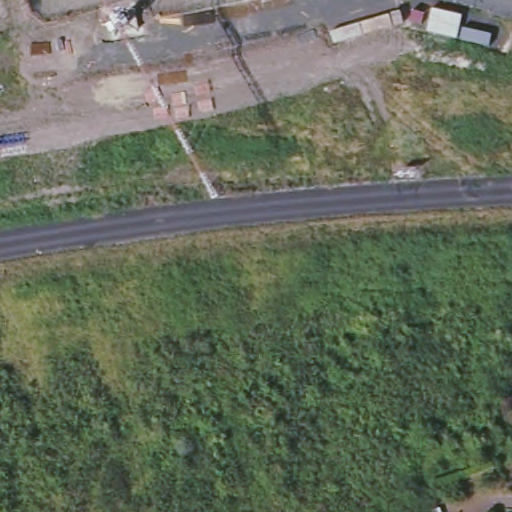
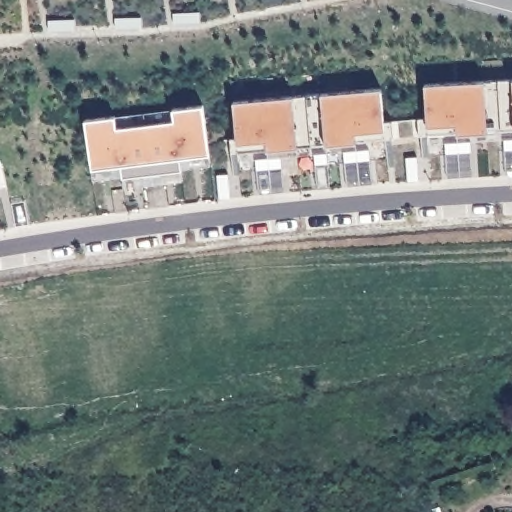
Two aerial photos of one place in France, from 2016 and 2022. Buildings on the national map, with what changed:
new [(426,126),(424,84),(512,79),(512,131),(420,136),(419,127),(426,126)]
new [(237,143),(233,101),(380,88),(383,125),(391,124),(392,138),(230,153),(229,144),(237,143)]
new [(115,115),(116,127),(173,119),(172,108),(202,104),(209,155),(179,159),(180,170),(121,178),(120,166),(91,170),(85,119),(115,115)]
new [(7,182),(0,183),(0,158),(2,157),(7,182)]

